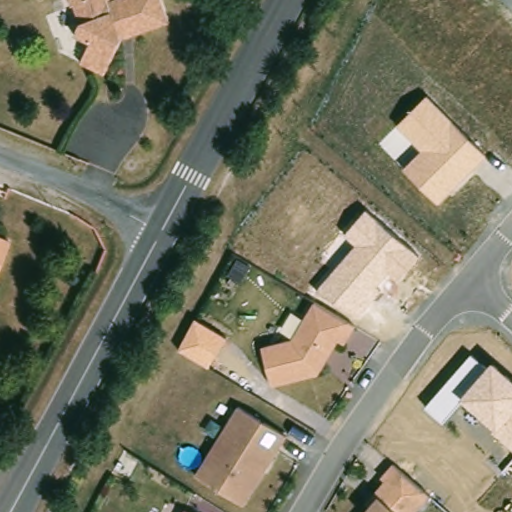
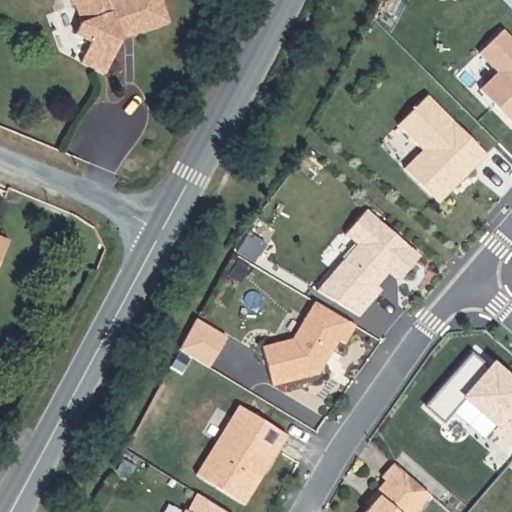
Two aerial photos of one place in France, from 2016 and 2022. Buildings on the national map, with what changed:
unchanged [(76,66),(85,45),(69,37),(75,26),(76,24),(70,6),(67,6),(65,0),(157,0),(165,25),(115,40),(109,55),(100,76),(76,66)]
new [(512,127),(478,93),(497,76),(477,57),(502,33),(512,44),(512,127)]
unchanged [(402,170),(420,151),(395,126),(428,96),(486,154),(439,204),(402,170)]
unchanged [(314,291),(355,246),(342,237),(366,210),(421,257),(397,283),(390,276),(377,287),(380,291),(358,317),(314,291)]
unchanged [(0,261),(0,236),(9,240),(0,261)]
unchanged [(317,373),(271,386),(262,347),(292,339),(315,301),(347,321),(355,326),(345,343),(338,340),(332,351),(324,363),(317,373)]
unchanged [(179,350),(196,320),(226,338),(209,366),(179,350)]
unchanged [(492,433),(497,427),(463,401),(442,422),(423,407),(471,355),(486,367),(492,360),(512,378),(512,452),(492,433)]
unchanged [(244,505),(196,475),(239,406),(287,436),(244,505)]
unchanged [(370,506),(366,503),(374,494),(386,481),(382,477),(393,463),(416,482),(430,495),(415,512),(365,512),(370,506)]
unchanged [(185,510),(190,512),(184,512),(185,510)]

